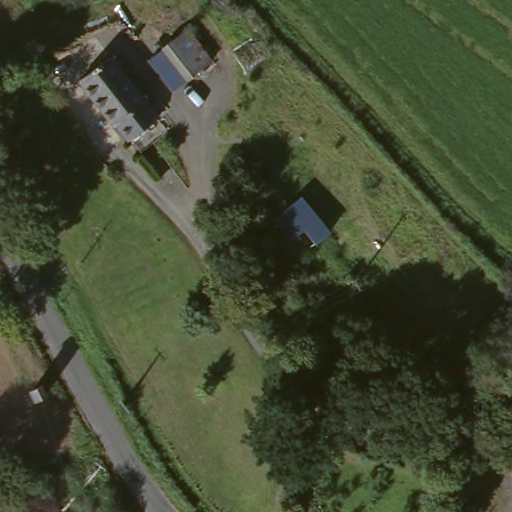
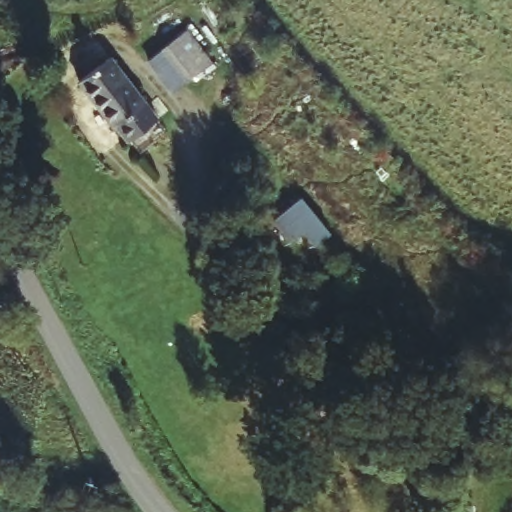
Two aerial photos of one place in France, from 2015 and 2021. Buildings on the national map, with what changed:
unchanged [(177,34),(206,65),(183,84),(155,54),(177,34)]
unchanged [(105,63),(158,123),(127,149),(76,91),(105,63)]
unchanged [(333,234),(316,247),(303,233),(297,239),(277,215),(301,196),(333,234)]

